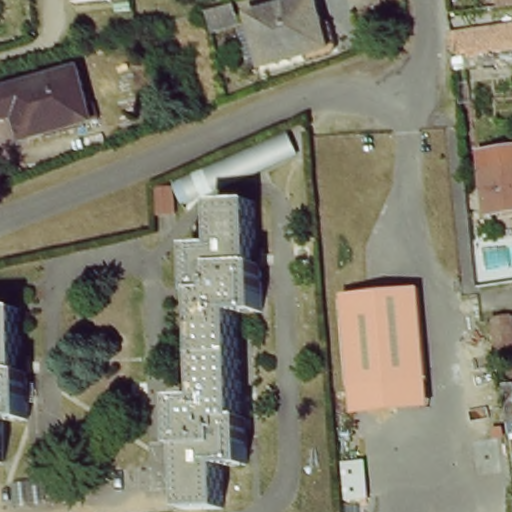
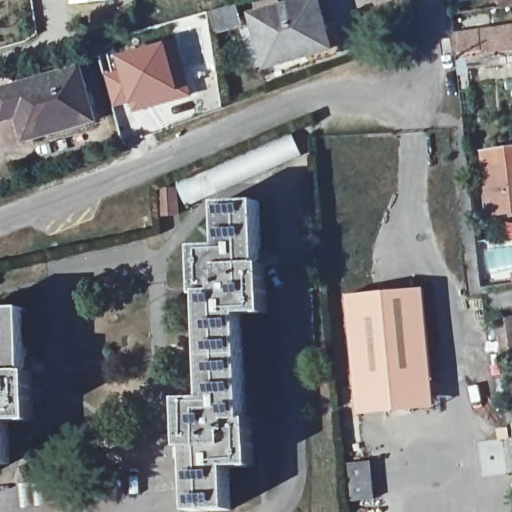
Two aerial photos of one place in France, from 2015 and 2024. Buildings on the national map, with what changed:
unchanged [(77,3),(77,0),(104,0),(77,3)]
unchanged [(334,49),(269,68),(254,16),(310,0),(319,0),(334,49)]
unchanged [(216,33),(211,12),(238,5),(244,25),(216,33)]
unchanged [(482,47),(457,50),(455,29),(512,23),(512,59),(470,64),(469,52),(484,51),(482,47)]
new [(123,68),(120,55),(168,41),(182,84),(188,82),(191,96),(134,113),(131,103),(114,108),(105,74),(123,68)]
unchanged [(102,121),(33,141),(26,117),(9,122),(1,93),(25,86),(52,79),(64,75),(88,69),(102,121)]
unchanged [(308,155),(198,203),(187,173),(294,127),(308,155)]
unchanged [(512,150),(512,213),(492,215),(485,153),(512,150)]
unchanged [(190,447),(185,448),(183,400),(208,399),(204,295),(200,295),(198,247),(222,246),(221,204),(260,202),(262,265),(267,265),(269,313),(244,314),(248,419),(252,418),(254,466),(230,467),(231,510),(193,511),(190,447)]
unchanged [(349,296),(425,289),(434,383),(358,390),(349,296)]
unchanged [(33,373),(34,421),(10,422),(12,464),(0,465),(0,311),(26,310),(28,373),(33,373)]
unchanged [(504,346),(500,320),(512,319),(512,345),(504,346)]
unchanged [(434,383),(436,409),(360,416),(358,390),(434,383)]
unchanged [(509,386),(512,386),(512,410),(509,386)]
new [(375,498),(354,500),(350,463),(372,461),(375,498)]

